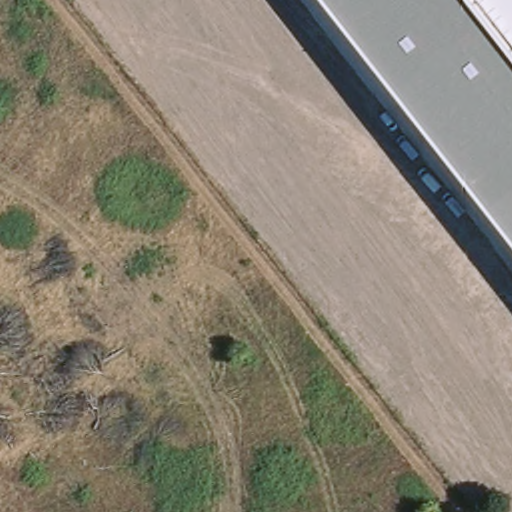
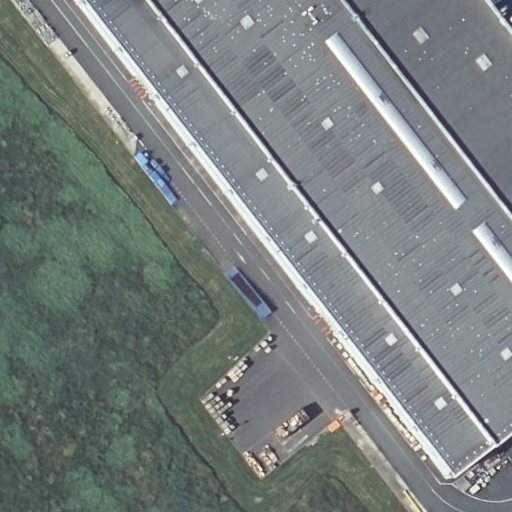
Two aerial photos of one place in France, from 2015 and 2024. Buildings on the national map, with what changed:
new [(75,0),(330,0),(512,234),(512,425),(486,447),(446,478),(75,0)]
unchanged [(330,0),(473,0),(512,50),(512,234),(330,0)]
unchanged [(473,0),(512,0),(512,50),(473,0)]

